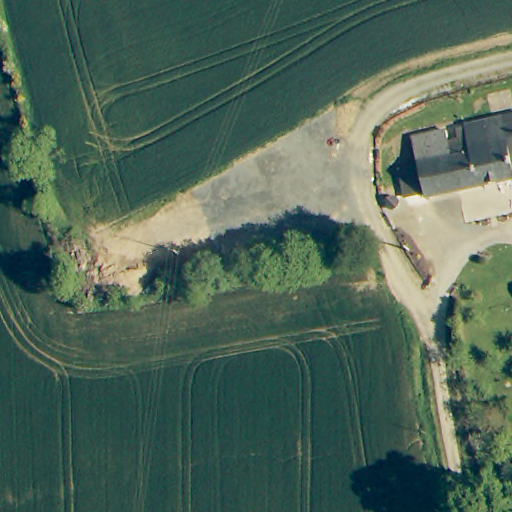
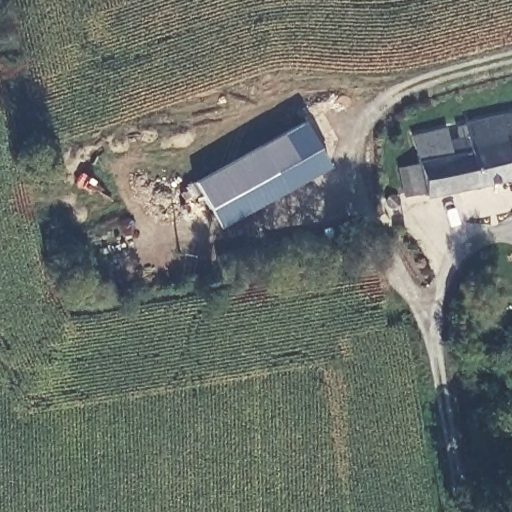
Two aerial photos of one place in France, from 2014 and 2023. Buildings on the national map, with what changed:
unchanged [(413,141),(447,131),(450,143),(468,137),(465,126),(512,112),(512,177),(431,199),(430,196),(410,201),(402,173),(421,167),(413,141)]
new [(330,167),(220,229),(195,182),(303,122),(330,167)]

